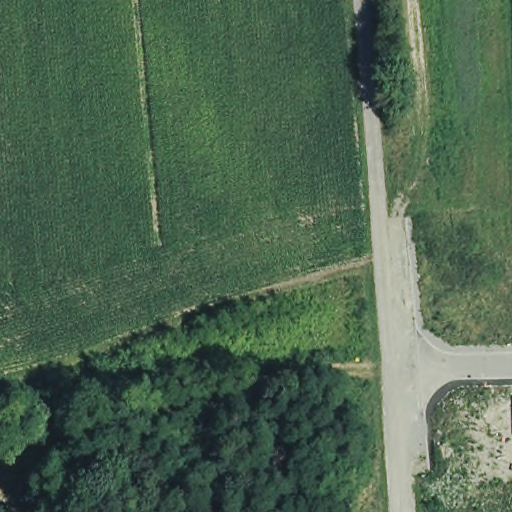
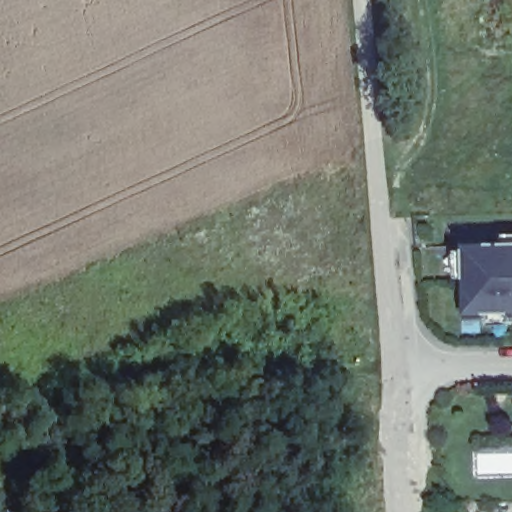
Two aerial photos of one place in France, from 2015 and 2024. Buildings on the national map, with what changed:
new [(469,247),(512,246),(512,326),(492,327),(492,317),(470,317),(469,247)]

